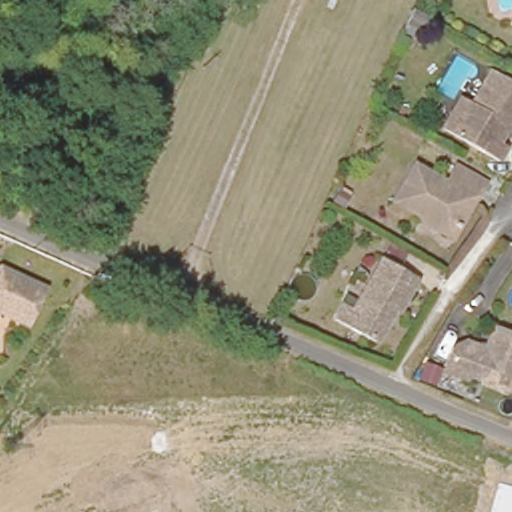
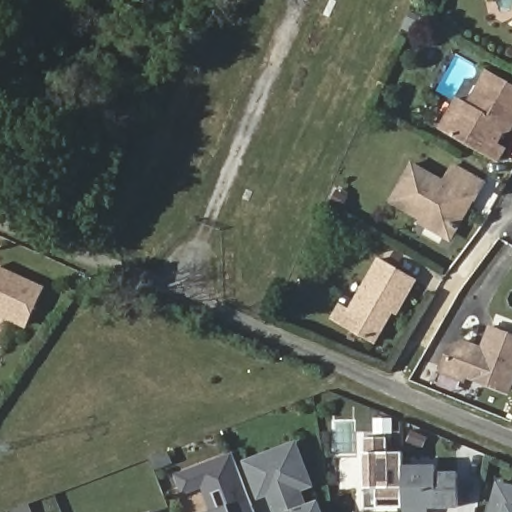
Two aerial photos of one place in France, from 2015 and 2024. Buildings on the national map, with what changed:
unchanged [(491,122),(500,128),(491,143),(436,109),(455,77),(466,84),(484,54),(512,71),(512,99),(510,103),(503,113),(498,110),(491,122)]
unchanged [(419,215),(423,208),(395,193),(415,156),(447,174),(456,157),(488,175),(478,193),(454,233),(419,215)]
unchanged [(383,250),(416,269),(396,307),(391,304),(374,334),(335,312),(344,296),(354,301),(383,250)]
unchanged [(41,288),(24,326),(0,315),(0,270),(41,288)]
unchanged [(471,369),(470,373),(449,365),(458,342),(469,337),(488,344),(497,323),(512,330),(512,383),(511,386),(471,369)]
new [(365,493),(364,442),(386,441),(387,456),(403,456),(403,467),(403,512),(377,512),(376,512),(365,512),(365,493)]
new [(294,444),(300,459),(310,484),(298,489),(305,508),(317,503),(320,512),(276,512),(269,492),(259,496),(246,462),(267,455),(294,444)]
new [(211,511),(202,487),(183,495),(175,475),(232,453),(254,512),(210,512),(211,511)]
new [(435,467),(435,474),(457,474),(457,507),(426,508),(426,512),(403,512),(403,467),(435,467)]
new [(512,512),(490,512),(498,483),(512,487),(512,512)]

